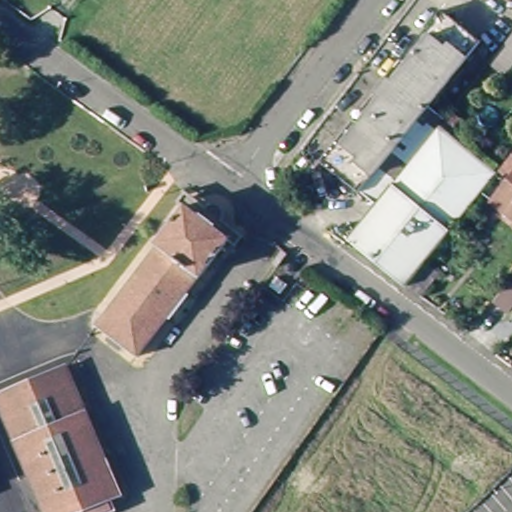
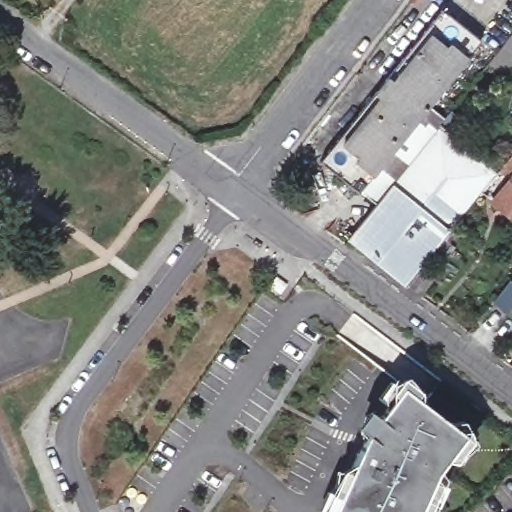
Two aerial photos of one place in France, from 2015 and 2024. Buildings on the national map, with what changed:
unchanged [(361,196),(360,198),(319,165),(445,14),(483,45),(430,110),(446,123),(441,130),(376,208),(361,196)]
unchanged [(508,80),(490,64),(512,38),(512,76),(508,80)]
demolished [(90,126),(82,136),(115,161),(91,192),(26,144),(37,129),(27,122),(48,94),(90,126)]
unchanged [(421,298),(409,288),(406,292),(343,248),(376,208),(441,130),(498,177),(426,267),(438,277),(421,298)]
unchanged [(504,169),(512,159),(512,175),(504,169)]
unchanged [(492,205),(512,181),(512,221),(492,205)]
demolished [(137,360),(96,330),(185,213),(195,222),(198,218),(201,215),(205,214),(210,215),(211,216),(213,217),(216,222),(217,227),(216,232),(214,236),(226,245),(137,360)]
unchanged [(508,279),(512,283),(512,304),(505,312),(491,300),(508,279)]
demolished [(0,398),(67,369),(122,500),(110,505),(95,512),(43,512),(36,496),(30,481),(0,411),(0,398)]
new [(403,386),(466,435),(437,472),(420,512),(333,512),(369,431),(403,386)]

